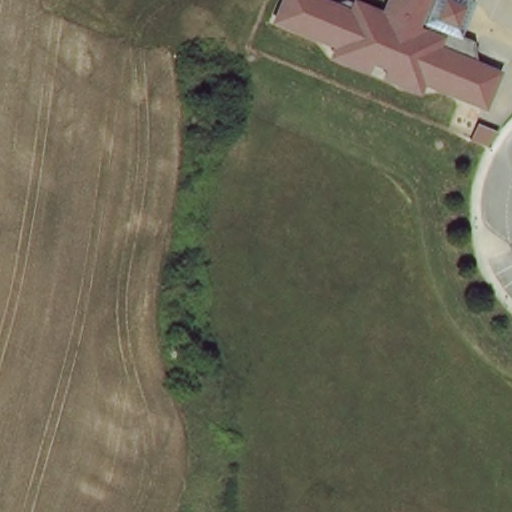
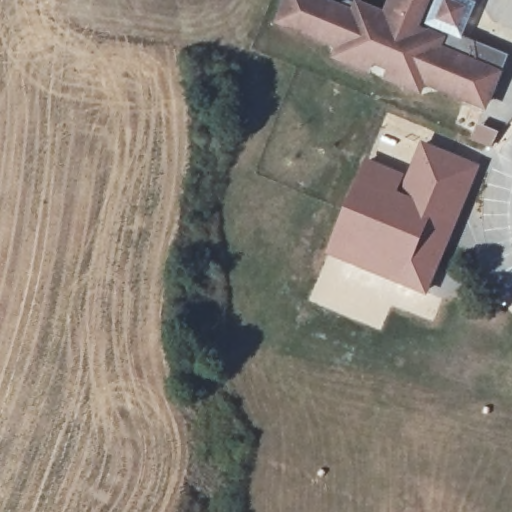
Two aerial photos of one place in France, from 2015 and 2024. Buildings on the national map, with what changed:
unchanged [(475,39),(477,63),(497,72),(483,105),(441,85),(443,80),(425,72),(418,87),(385,72),(389,64),(371,56),(367,65),(335,50),(341,35),(323,26),(321,32),(278,13),(284,0),(362,0),(385,10),(390,0),(436,0),(432,10),(428,19),(449,27),(462,33),(475,39)]
unchanged [(494,112),(488,125),(469,117),(475,104),(494,112)]
new [(484,168),(434,296),(331,255),(372,160),(413,178),(426,144),(484,168)]

